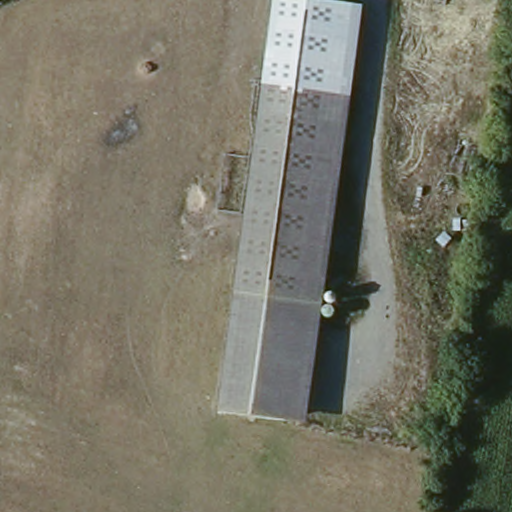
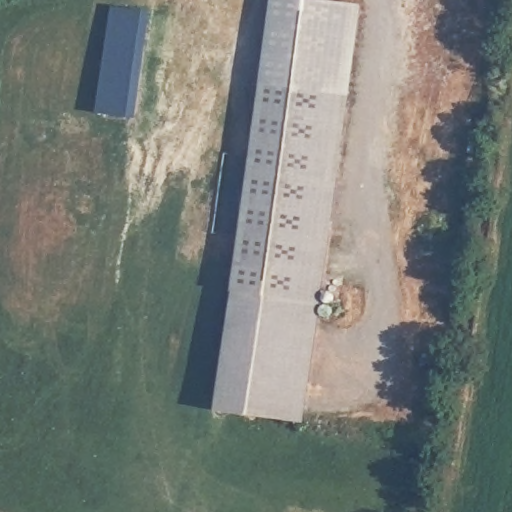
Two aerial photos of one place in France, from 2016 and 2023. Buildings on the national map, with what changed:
unchanged [(305,426),(221,412),(278,0),(315,0),(360,7),(305,426)]
new [(111,12),(146,18),(131,125),(96,120),(111,12)]

